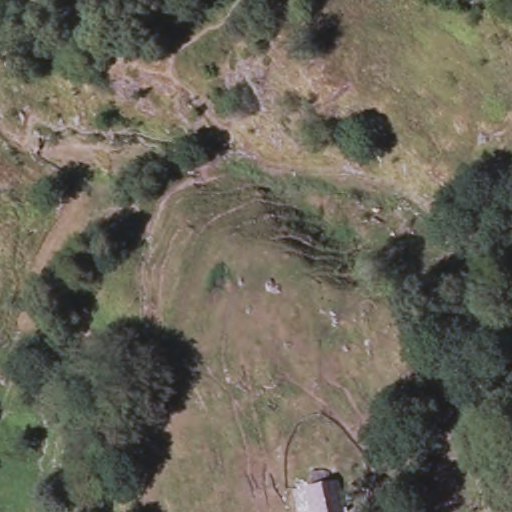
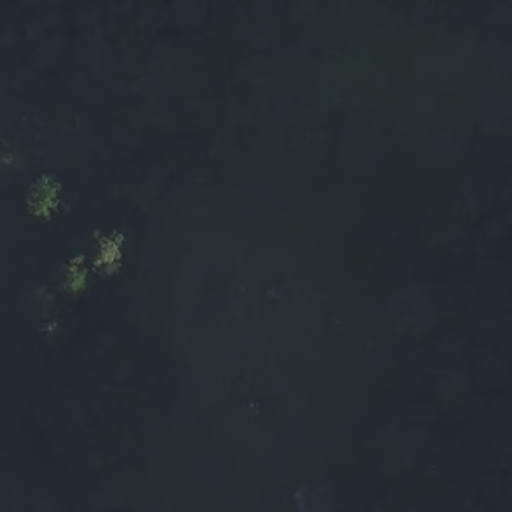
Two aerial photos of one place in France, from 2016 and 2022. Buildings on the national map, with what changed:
unchanged [(332,483),(332,512),(305,512),(305,484),(332,483)]

